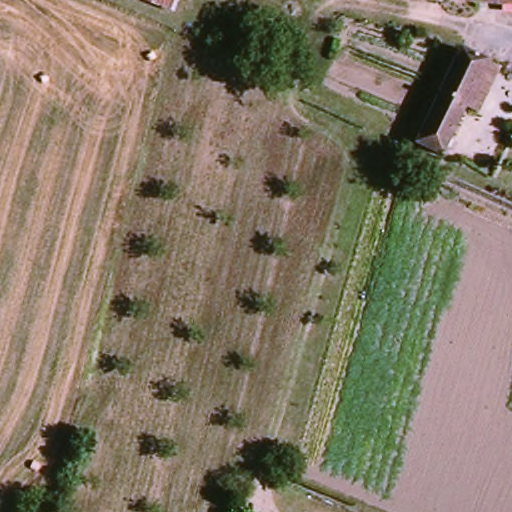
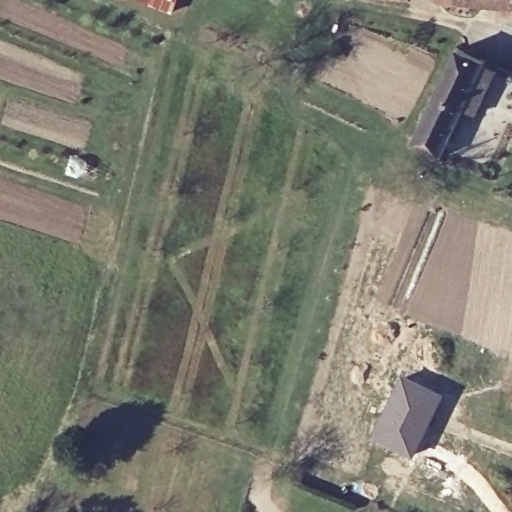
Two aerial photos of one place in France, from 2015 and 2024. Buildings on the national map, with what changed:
unchanged [(137,0),(178,0),(173,12),(137,0)]
unchanged [(462,0),(512,0),(512,7),(495,4),(462,0)]
unchanged [(420,142),(460,51),(486,63),(484,68),(497,74),(477,117),(465,112),(447,153),(420,142)]
new [(400,373),(445,394),(412,460),(370,440),(400,373)]

